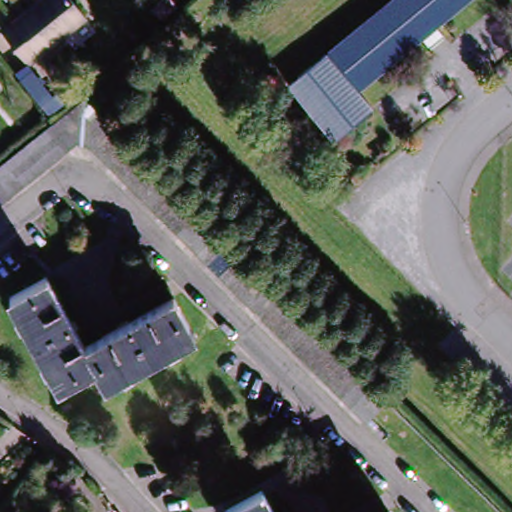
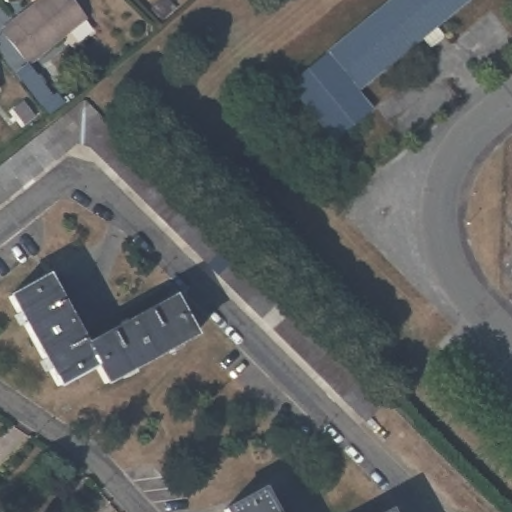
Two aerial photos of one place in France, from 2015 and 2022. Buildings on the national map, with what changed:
unchanged [(37,0),(61,0),(78,21),(22,64),(0,37),(0,28),(37,0)]
unchanged [(292,86),(396,0),(472,0),(438,28),(446,38),(433,48),(426,39),(360,92),(376,111),(338,142),(292,86)]
unchanged [(58,92),(66,101),(53,112),(45,102),(58,92)]
unchanged [(1,166),(12,157),(24,148),(34,140),(46,131),(84,102),(110,128),(119,137),(128,146),(139,156),(149,167),(158,176),(168,185),(178,196),(188,206),(198,216),(208,226),(188,245),(187,246),(177,236),(167,226),(157,216),(147,206),(137,196),(128,187),(118,177),(108,167),(104,163),(98,157),(89,148),(75,143),(63,152),(51,161),(41,170),(29,179),(18,188),(8,196),(0,202),(0,167),(1,166)]
unchanged [(245,303),(236,294),(225,284),(216,274),(206,264),(198,257),(196,255),(217,234),(227,244),(237,254),(247,264),(257,273),(267,283),(282,298),(292,308),(302,318),(312,328),(323,339),(333,349),(344,359),(354,369),(365,380),(375,390),(385,400),(364,421),(354,411),(343,401),(339,397),(332,390),(322,380),(312,370),(302,360),(292,350),(291,349),(281,339),(271,329),(261,319),(246,304),(245,303)]
unchanged [(94,368),(57,387),(9,298),(45,278),(83,348),(171,299),(191,335),(103,384),(94,368)]
unchanged [(220,506),(256,487),(269,512),(223,512),(220,506)]
unchanged [(383,509),(384,512),(378,512),(383,509)]

